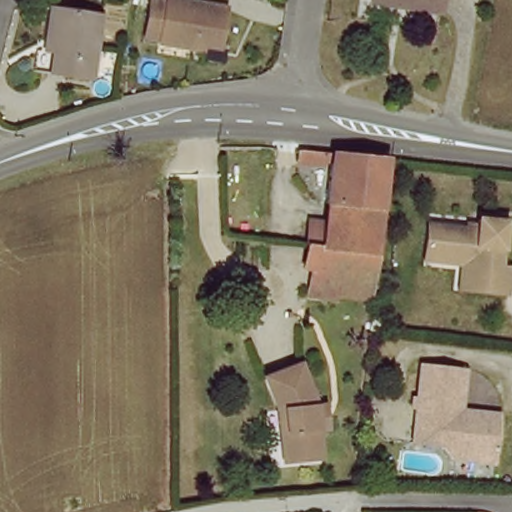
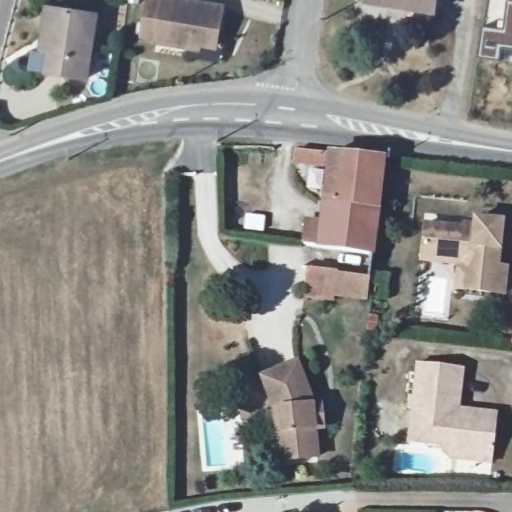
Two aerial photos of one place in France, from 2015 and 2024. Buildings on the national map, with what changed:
unchanged [(189,53),(190,48),(158,43),(159,38),(144,36),(150,0),(153,0),(165,2),(165,0),(174,0),(223,8),(217,48),(223,49),(222,59),(189,53)]
unchanged [(368,2),(368,0),(438,0),(436,13),(368,2)]
new [(507,0),(512,0),(512,51),(502,50),(500,62),(478,59),(481,28),(503,30),(507,0)]
unchanged [(48,73),(52,51),(42,50),(49,8),(58,9),(98,15),(88,79),(48,73)]
unchanged [(382,209),(330,203),(334,167),(301,163),(302,150),(333,153),(388,159),(382,209)]
unchanged [(330,203),(382,209),(380,229),(327,223),(330,203)]
unchanged [(427,261),(429,238),(431,223),(446,225),(480,228),(481,218),(508,221),(503,266),(512,267),(512,273),(510,294),(471,290),(461,289),(464,264),(427,261)]
unchanged [(327,223),(380,229),(371,300),(339,296),(338,301),(309,297),(313,270),(306,269),(309,244),(311,221),(327,223)]
unchanged [(456,463),(447,452),(414,448),(418,414),(414,413),(415,401),(419,402),(423,368),(462,372),(468,373),(463,415),(503,419),(502,425),(498,458),(497,468),(456,463)]
unchanged [(328,473),(290,477),(285,425),(272,392),(307,379),(321,416),(322,420),(330,420),(333,443),(325,444),(328,473)]

